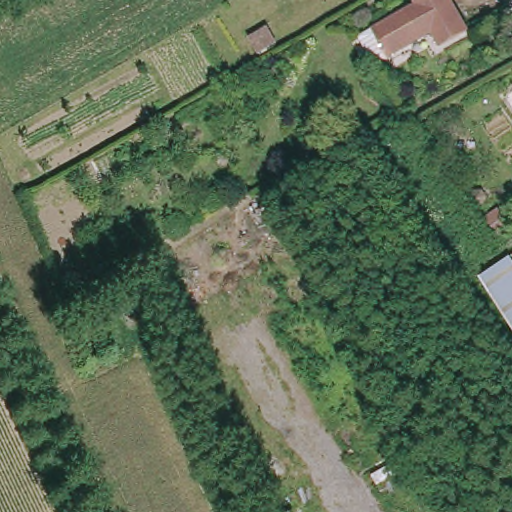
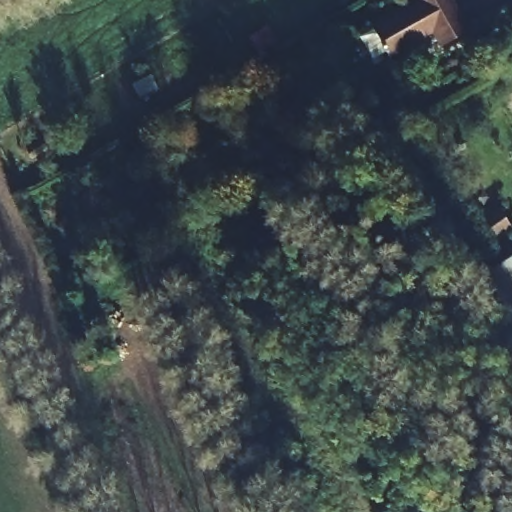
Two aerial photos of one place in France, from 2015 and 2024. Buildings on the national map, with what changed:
unchanged [(479,26),(448,44),(440,31),(377,65),(362,36),(422,2),(422,0),(463,0),(479,26)]
unchanged [(512,256),(512,324),(480,275),(512,256)]

